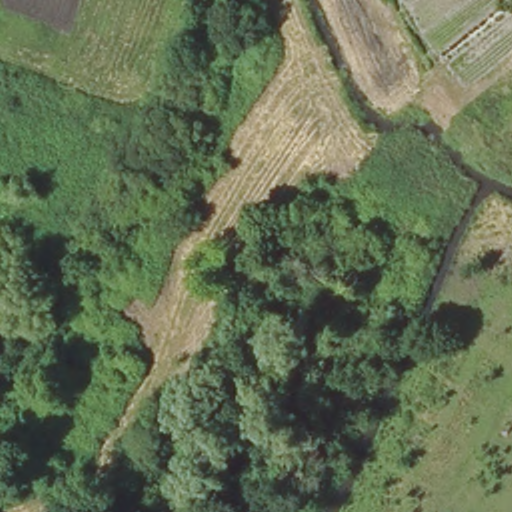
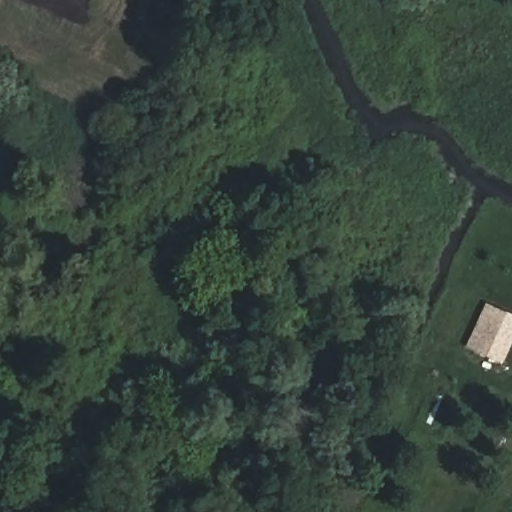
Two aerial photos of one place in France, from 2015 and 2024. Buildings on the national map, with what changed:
new [(504,364),(477,350),(497,307),(512,314),(512,344),(504,364)]

